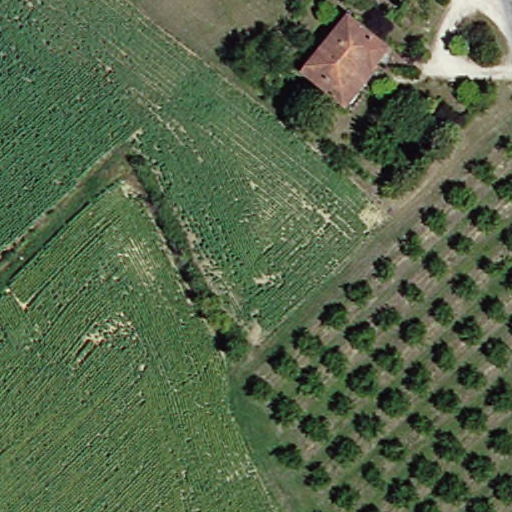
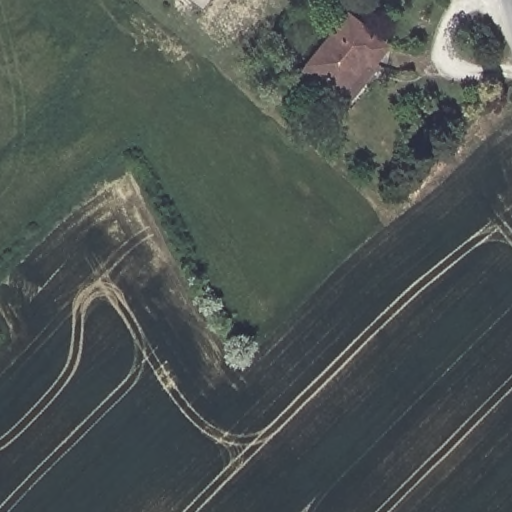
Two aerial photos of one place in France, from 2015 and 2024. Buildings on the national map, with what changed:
unchanged [(389,54),(373,71),(378,77),(352,105),(314,68),(354,22),(389,54)]

